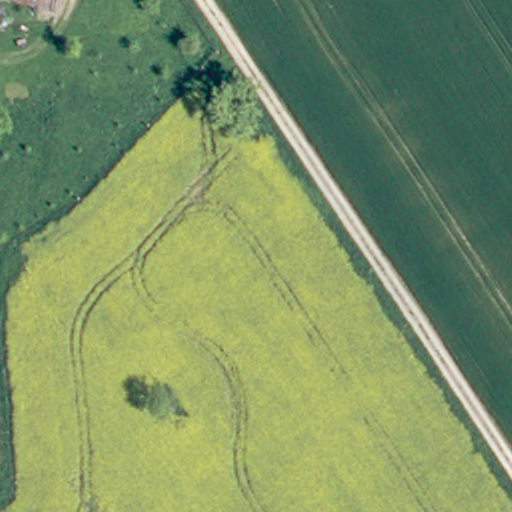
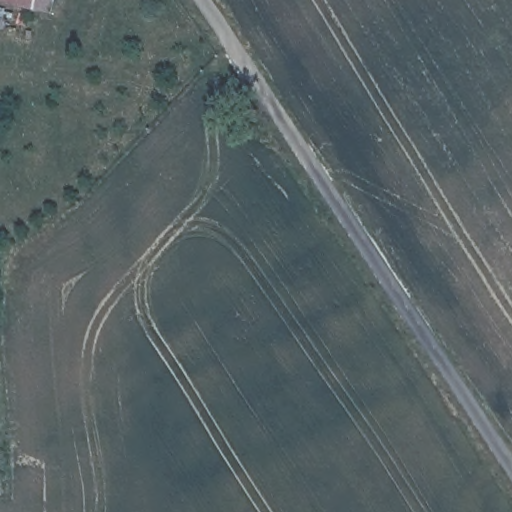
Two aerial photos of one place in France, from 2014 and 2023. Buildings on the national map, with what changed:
unchanged [(40,9),(20,7),(20,1),(17,0),(42,0),(40,9)]
unchanged [(58,11),(40,9),(42,0),(60,0),(58,11)]

